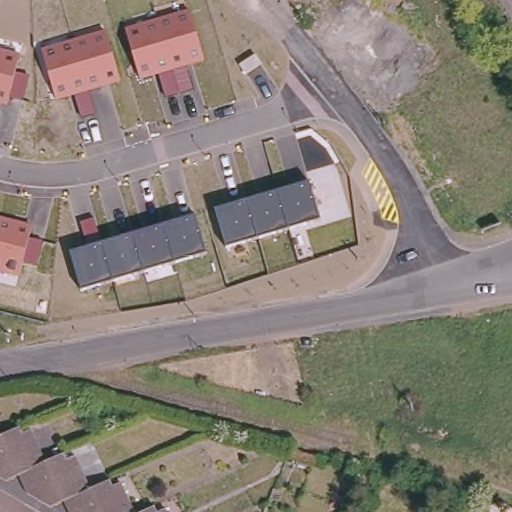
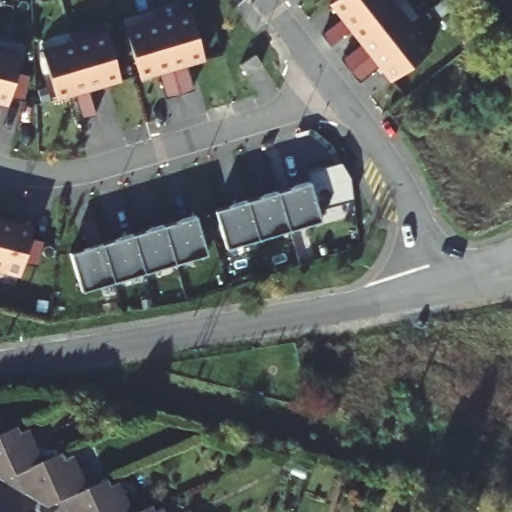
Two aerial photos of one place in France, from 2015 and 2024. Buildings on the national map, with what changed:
new [(337,64),(357,48),(346,34),(326,49),(318,38),(337,23),(325,8),(336,0),(378,0),(382,5),(402,30),(422,57),(385,85),(373,70),(355,85),(346,74),(337,64)]
unchanged [(190,9),(205,60),(185,66),(192,90),(165,97),(158,73),(141,79),(124,29),(190,9)]
unchanged [(105,30),(121,80),(88,89),(95,114),(80,117),(73,95),(56,100),(40,49),(105,30)]
unchanged [(16,72),(30,75),(24,101),(10,97),(8,107),(0,105),(0,49),(20,55),(16,72)]
unchanged [(225,247),(215,210),(308,181),(320,220),(225,247)]
unchanged [(206,253),(80,288),(70,251),(195,215),(206,253)]
unchanged [(0,216),(32,224),(29,237),(42,240),(37,265),(24,263),(20,278),(0,273),(0,216)]
unchanged [(21,425),(25,432),(32,429),(47,458),(66,450),(70,457),(77,454),(93,486),(112,477),(115,483),(121,480),(137,512),(66,512),(61,502),(50,508),(29,495),(24,492),(16,475),(3,480),(0,479),(0,430),(2,434),(21,425)]
unchanged [(161,512),(142,512),(157,505),(161,512)]
unchanged [(169,512),(161,512),(167,509),(169,512)]

